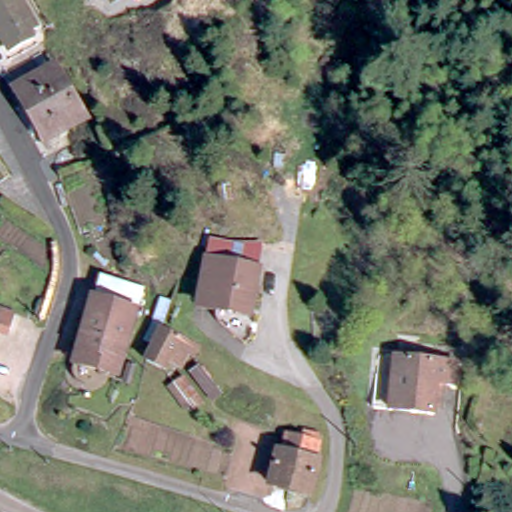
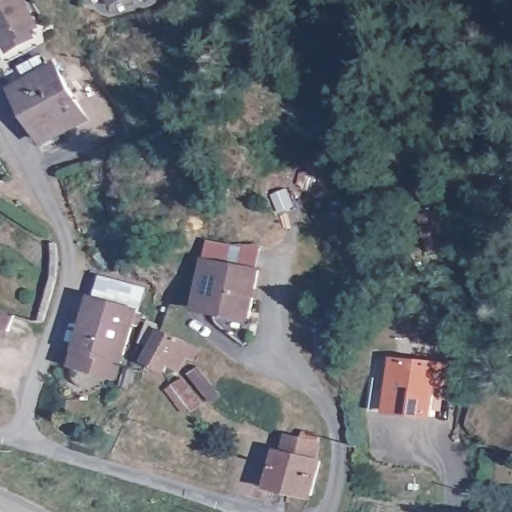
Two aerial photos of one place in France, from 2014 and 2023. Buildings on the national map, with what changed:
unchanged [(27,33),(30,39),(6,49),(0,33),(0,0),(24,0),(35,29),(27,33)]
unchanged [(108,0),(123,0),(111,6),(108,0)]
unchanged [(95,126),(57,148),(20,80),(51,64),(60,77),(67,74),(95,126)]
unchanged [(223,326),(225,320),(196,312),(205,282),(208,266),(212,250),(237,256),(233,271),(258,277),(254,296),(246,332),(223,326)]
unchanged [(103,280),(145,292),(137,315),(96,302),(103,280)]
unchanged [(201,345),(196,359),(189,357),(186,369),(176,366),(173,373),(149,360),(155,345),(147,341),(162,298),(176,300),(163,331),(201,345)]
unchanged [(76,370),(96,302),(137,315),(117,381),(76,370)]
unchanged [(0,317),(0,311),(1,312),(0,317)]
unchanged [(387,405),(395,354),(471,366),(467,387),(452,385),(447,416),(425,412),(406,408),(387,405)]
unchanged [(270,490),(273,477),(270,476),(275,459),(279,460),(280,457),(286,459),(291,443),(302,446),(304,438),(322,443),(320,451),(309,500),(270,490)]

